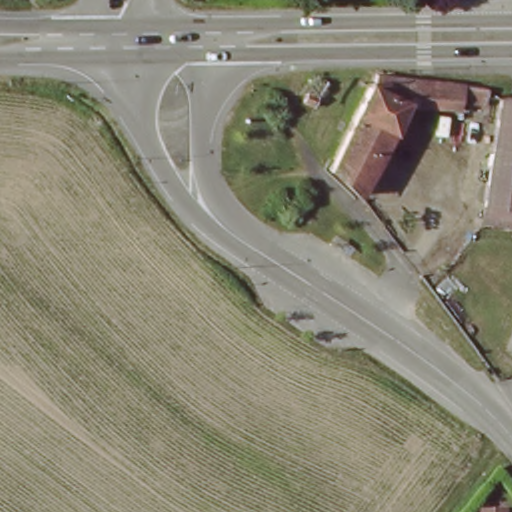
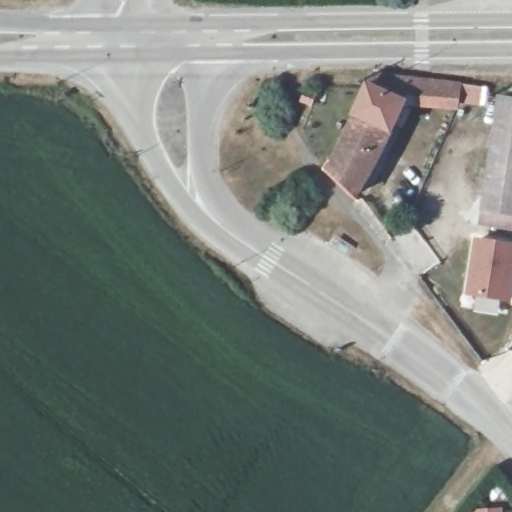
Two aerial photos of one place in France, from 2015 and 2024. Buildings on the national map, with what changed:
unchanged [(357,189),(346,203),(343,199),(323,173),(369,75),(379,75),(446,82),(457,83),(473,85),(469,104),(439,102),(399,98),(357,189)]
unchanged [(305,108),(291,104),(300,87),(312,90),(305,108)]
unchanged [(475,211),(497,91),(512,93),(512,220),(475,211)]
new [(512,244),(512,302),(466,295),(475,238),(512,244)]

